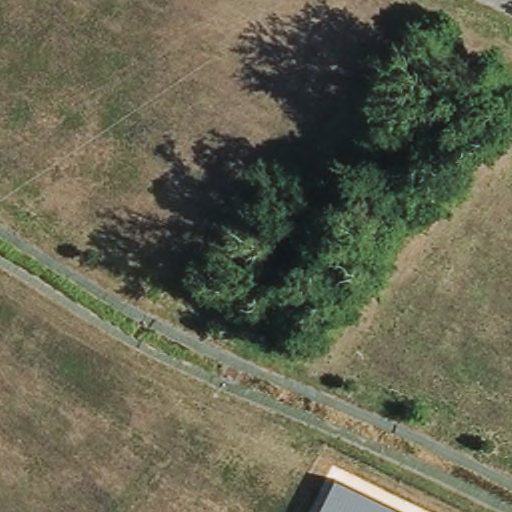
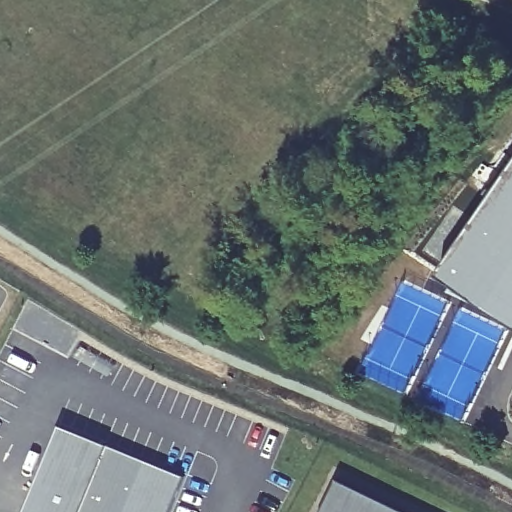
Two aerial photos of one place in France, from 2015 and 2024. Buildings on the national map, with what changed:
new [(512,322),(486,305),(440,273),(512,166),(512,322)]
new [(61,426),(108,446),(183,477),(169,512),(26,512),(61,426)]
unchanged [(404,512),(324,512),(337,481),(404,512)]

